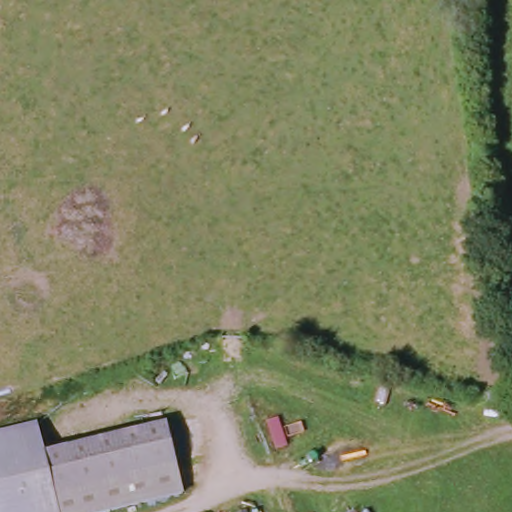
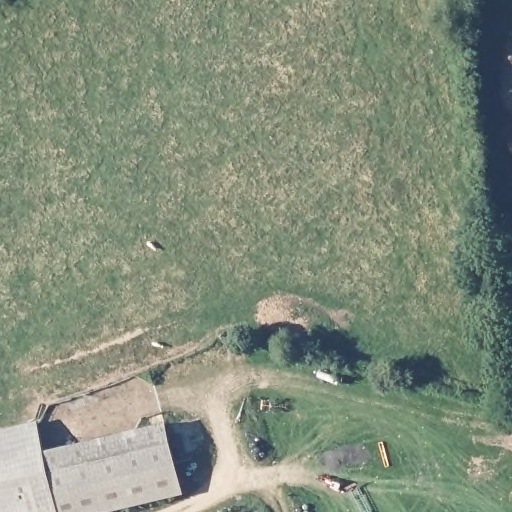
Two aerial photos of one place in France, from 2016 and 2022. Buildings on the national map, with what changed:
unchanged [(45,455),(170,425),(186,495),(117,512),(0,512),(0,433),(37,425),(45,455)]

